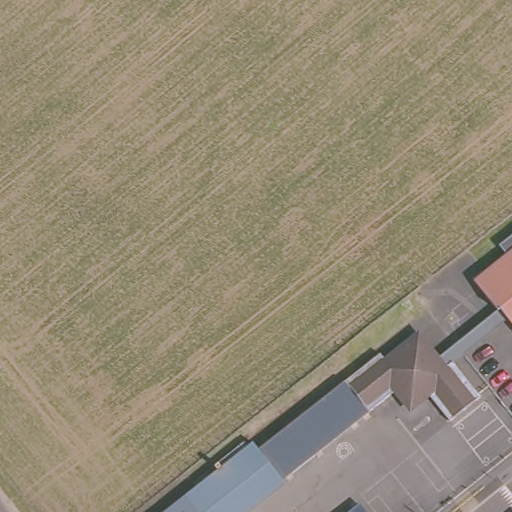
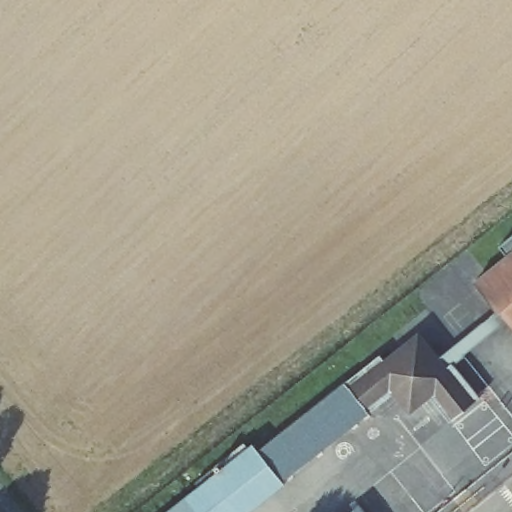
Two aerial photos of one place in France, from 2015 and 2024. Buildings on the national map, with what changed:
unchanged [(475,280),(507,254),(500,245),(512,236),(512,326),(475,280)]
unchanged [(405,396),(351,439),(328,410),(390,360),(395,366),(427,341),(452,373),(460,366),(487,402),(457,426),(435,398),(417,412),(405,396)]
unchanged [(351,439),(292,485),(270,455),(328,410),(351,439)]
unchanged [(249,512),(191,512),(213,495),(207,487),(255,448),(262,457),(227,484),(249,512)]
unchanged [(249,512),(227,484),(262,457),(264,460),(270,455),(292,485),(258,512),(249,512)]
unchanged [(351,512),(359,506),(364,512),(351,512)]

